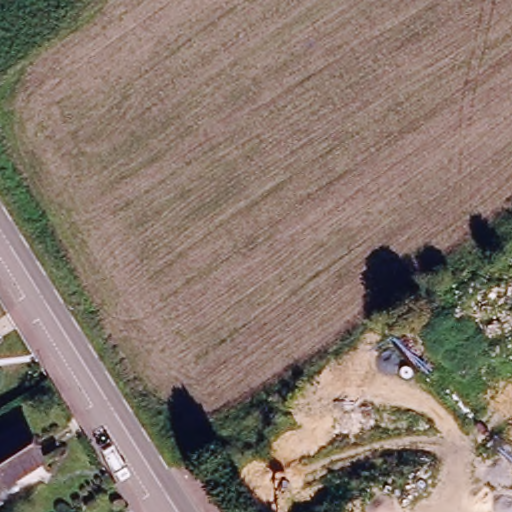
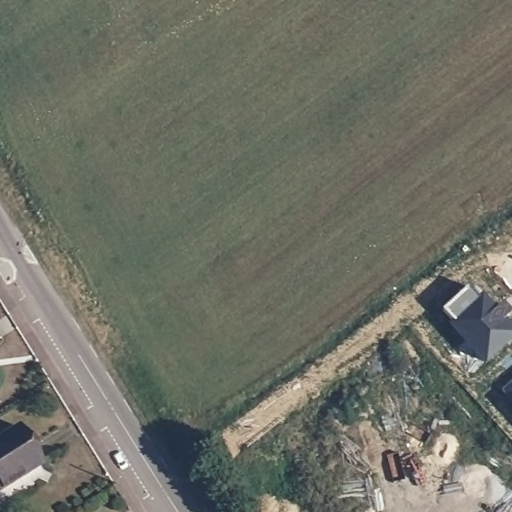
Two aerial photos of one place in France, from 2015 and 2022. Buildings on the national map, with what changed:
new [(439,314),(464,292),(475,303),(478,301),(512,338),(481,366),(447,329),(450,326),(439,314)]
unchanged [(41,462),(0,489),(0,439),(17,427),(41,462)]

